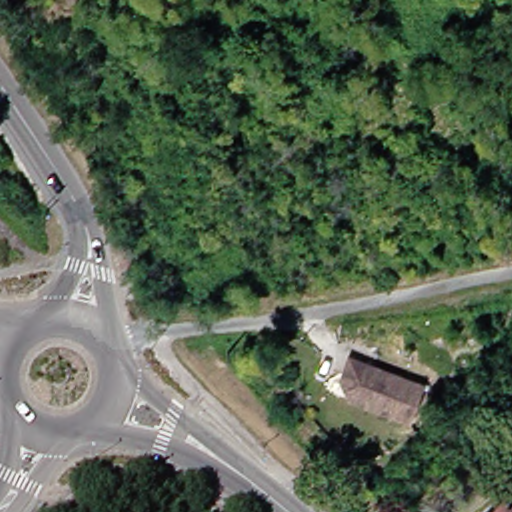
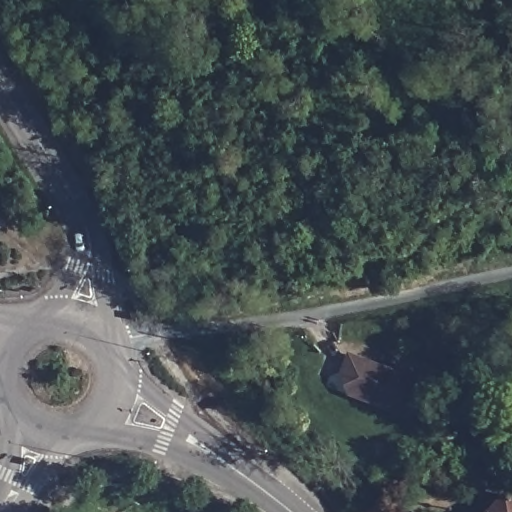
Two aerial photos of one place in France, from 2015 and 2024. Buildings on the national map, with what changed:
unchanged [(412,421),(351,397),(346,383),(350,373),(346,371),(352,355),(427,385),(412,421)]
unchanged [(512,499),(512,512),(500,512),(512,499)]

